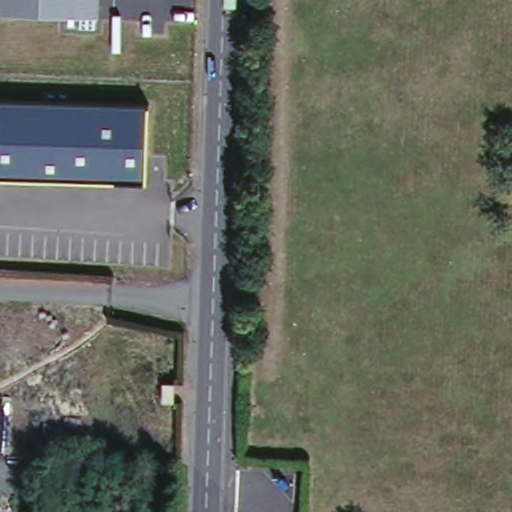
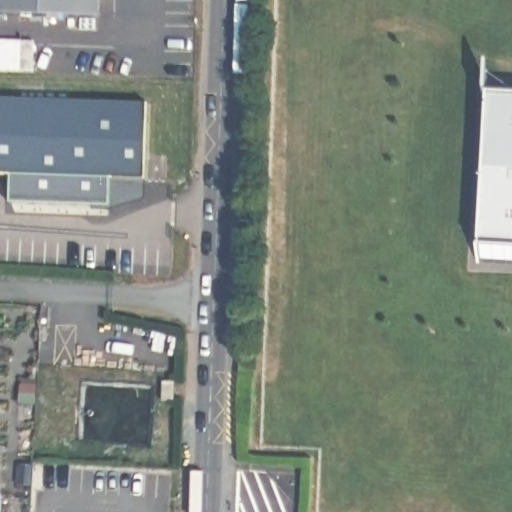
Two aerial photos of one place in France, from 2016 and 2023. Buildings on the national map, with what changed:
unchanged [(98,0),(98,15),(0,12),(0,0),(98,0)]
new [(512,259),(478,258),(487,92),(512,93),(512,259)]
unchanged [(147,105),(145,179),(111,178),(110,215),(11,212),(12,176),(0,175),(0,100),(147,105)]
new [(4,500),(3,512),(0,512),(0,499),(4,500)]

